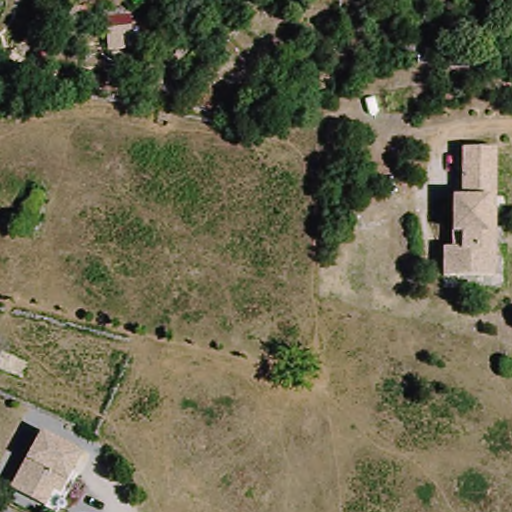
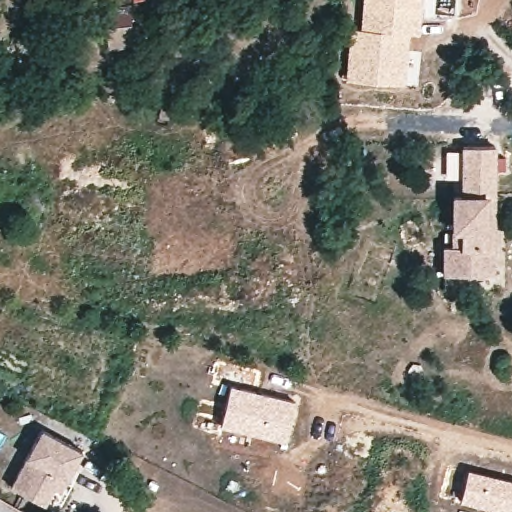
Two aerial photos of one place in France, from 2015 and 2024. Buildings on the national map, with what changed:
new [(358,28),(361,0),(423,0),(419,36),(411,35),(405,86),(343,81),(350,26),(358,28)]
new [(132,26),(133,46),(106,48),(105,29),(132,26)]
unchanged [(450,193),(465,193),(465,146),(496,146),(495,274),(450,273),(450,193)]
new [(227,392),(220,390),(223,383),(296,401),(287,442),(220,427),(227,392)]
unchanged [(43,430),(81,450),(53,505),(9,487),(43,430)]
new [(467,468),(512,480),(512,512),(501,512),(459,501),(467,468)]

